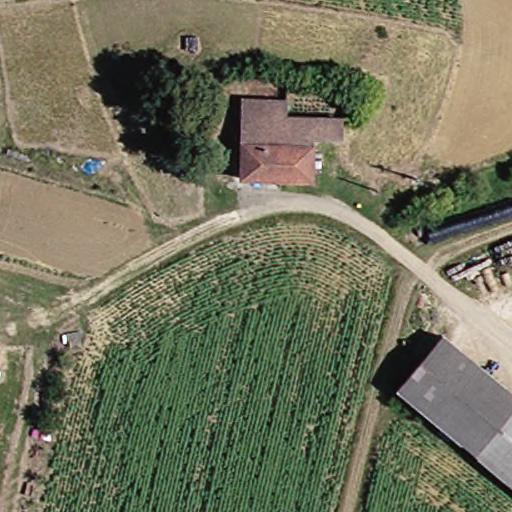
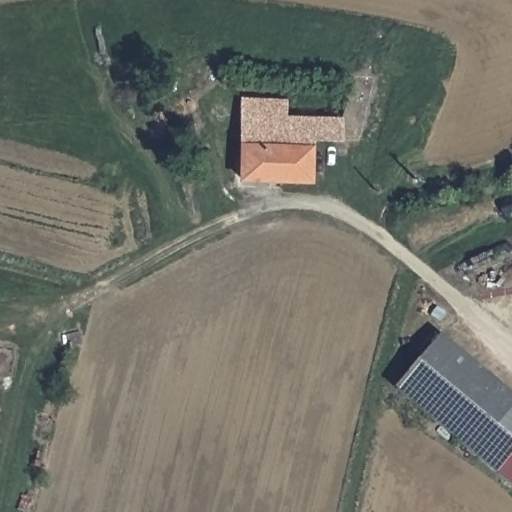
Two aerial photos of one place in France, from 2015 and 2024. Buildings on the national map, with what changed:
unchanged [(345,144),(322,143),(318,180),(243,182),(245,142),(250,143),(250,109),(263,110),(263,102),(284,103),(283,117),(345,118),(345,144)]
unchanged [(512,387),(512,483),(403,390),(450,335),(512,387)]
unchanged [(6,352),(0,382),(0,351),(6,352)]

